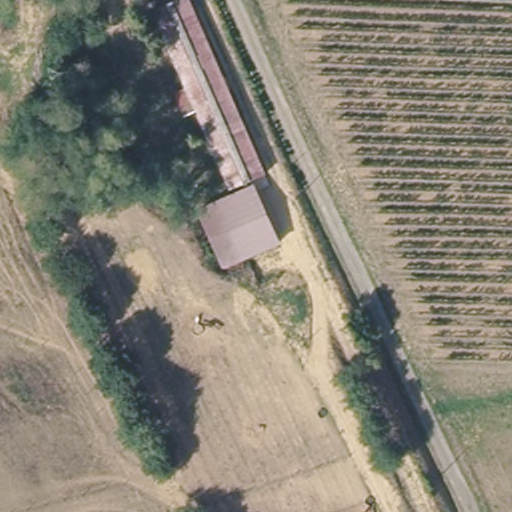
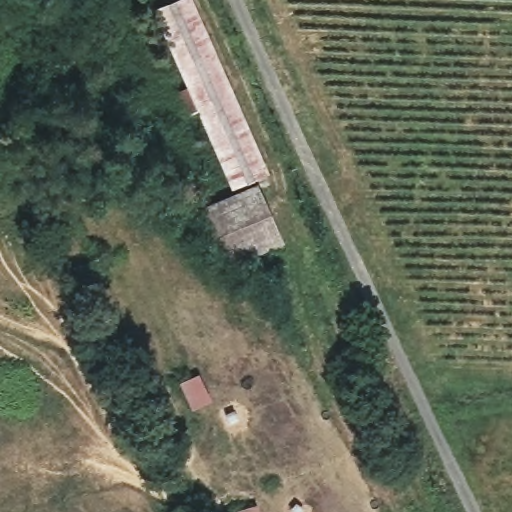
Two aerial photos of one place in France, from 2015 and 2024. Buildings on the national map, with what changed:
unchanged [(196,102),(182,110),(171,91),(184,83),(147,6),(158,0),(184,0),(263,167),(234,181),(196,102)]
unchanged [(281,230),(219,255),(197,205),(256,183),(281,230)]

